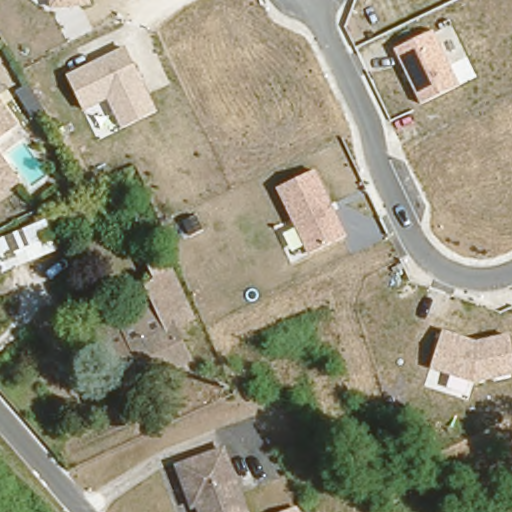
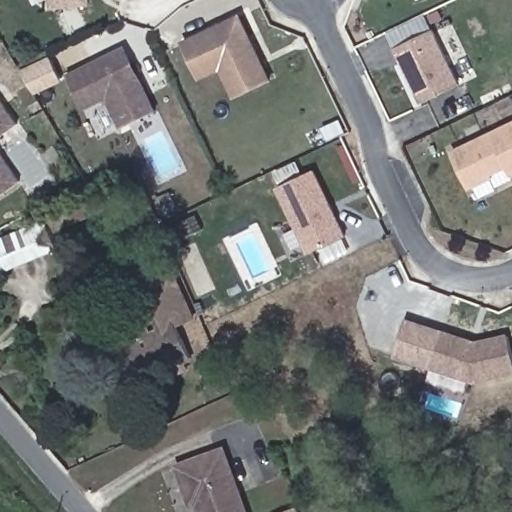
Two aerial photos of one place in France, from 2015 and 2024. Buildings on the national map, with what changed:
unchanged [(92,5),(51,7),(51,0),(92,0),(92,5)]
new [(221,70),(200,80),(182,45),(239,17),(270,81),(244,94),(235,98),(221,70)]
unchanged [(420,102),(395,47),(435,27),(461,84),(420,102)]
unchanged [(126,45),(159,110),(123,127),(109,99),(85,110),(68,72),(126,45)]
unchanged [(20,121),(0,135),(0,90),(20,121)]
new [(512,175),(511,175),(506,166),(489,175),(491,179),(470,189),(452,154),(512,125),(512,175)]
unchanged [(21,178),(0,193),(0,146),(21,178)]
unchanged [(317,170),(348,235),(309,253),(276,187),(317,170)]
unchanged [(89,212),(36,237),(43,251),(0,270),(0,238),(83,200),(89,212)]
unchanged [(125,390),(106,338),(128,330),(126,326),(162,311),(150,282),(176,272),(195,317),(180,325),(192,356),(183,360),(186,372),(127,394),(126,390),(125,390)]
unchanged [(509,332),(512,345),(512,375),(476,383),(393,355),(407,318),(477,339),(509,332)]
unchanged [(177,468),(224,450),(248,512),(201,512),(200,508),(198,502),(192,505),(177,468)]
unchanged [(512,507),(512,512),(509,512),(508,507),(512,507)]

